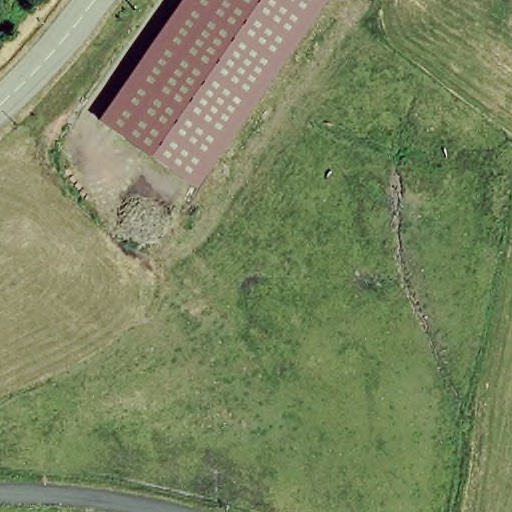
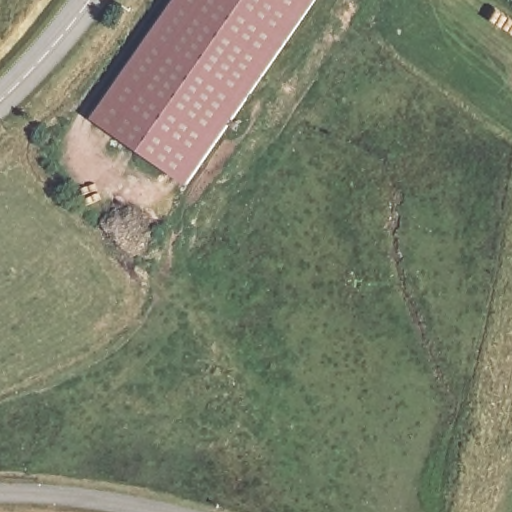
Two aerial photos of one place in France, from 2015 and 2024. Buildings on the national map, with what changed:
unchanged [(179,0),(318,0),(187,187),(94,122),(179,0)]

